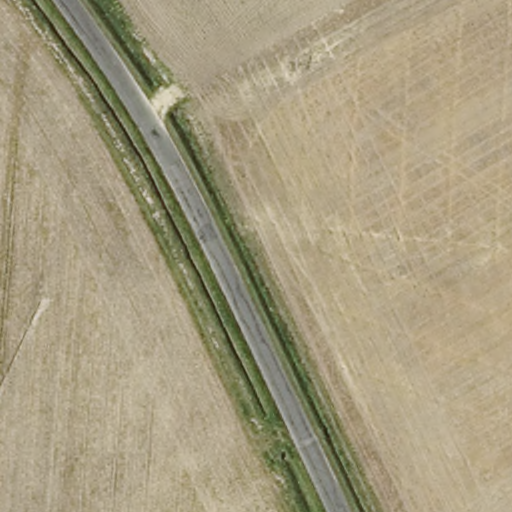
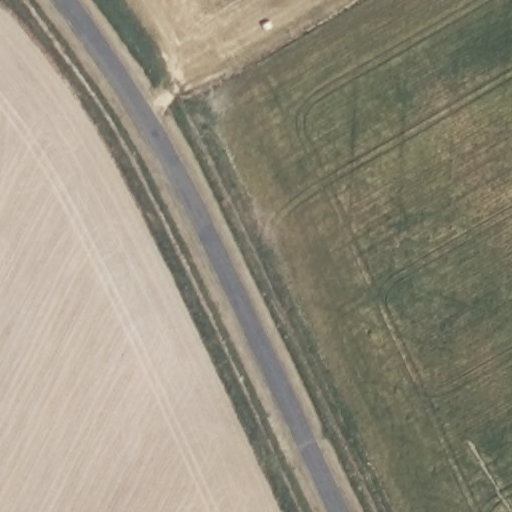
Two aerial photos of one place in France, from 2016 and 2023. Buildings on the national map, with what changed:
[]

